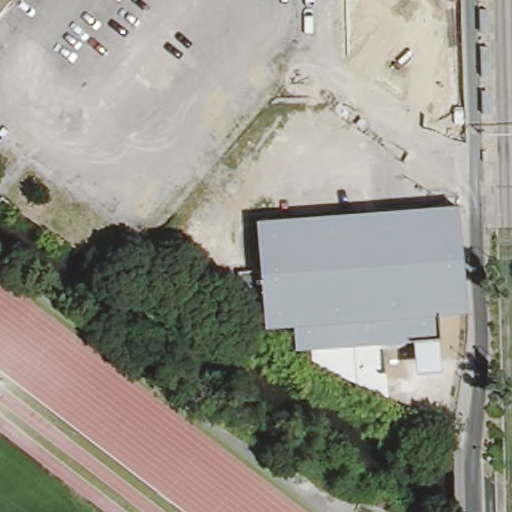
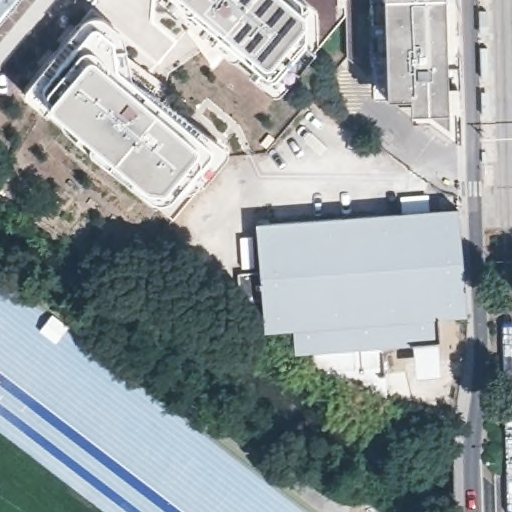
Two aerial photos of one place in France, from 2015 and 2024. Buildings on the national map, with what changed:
unchanged [(0,21),(0,0),(16,0),(0,21)]
new [(305,12),(303,24),(303,35),(302,40),(315,52),(278,91),(270,92),(159,0),(303,0),(305,12)]
new [(345,16),(315,52),(302,40),(303,35),(303,24),(305,12),(303,0),(344,0),(345,16)]
new [(375,76),(347,55),(345,16),(344,0),(370,0),(375,76)]
unchanged [(435,121),(375,76),(370,0),(452,0),(455,109),(455,137),(435,121)]
unchanged [(487,10),(488,33),(481,33),(480,11),(487,10)]
new [(90,15),(96,15),(104,16),(120,30),(125,36),(128,51),(128,70),(230,150),(205,180),(195,172),(168,203),(158,203),(26,97),(27,88),(86,18),(90,15)]
unchanged [(488,47),(489,77),(482,77),(480,47),(488,47)]
unchanged [(488,91),(489,114),(482,114),(481,91),(488,91)]
unchanged [(412,377),(410,342),(380,344),(365,345),(307,350),(301,350),(300,350),(300,349),(297,325),(270,326),(267,295),(245,297),(243,270),(265,268),(261,221),(462,206),(470,313),(441,315),(442,340),(435,340),(440,376),(412,377)]
unchanged [(380,344),(386,402),(310,366),(307,350),(380,344)]

